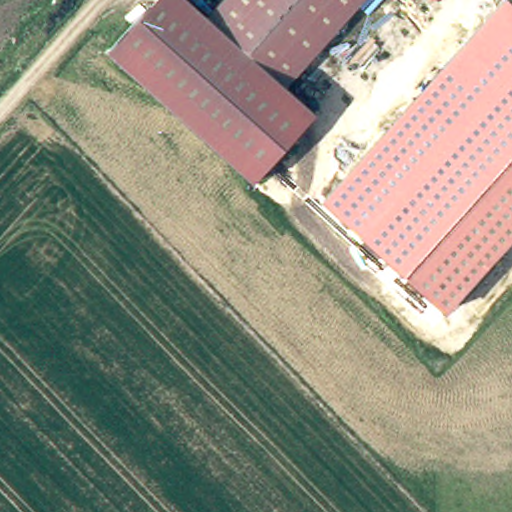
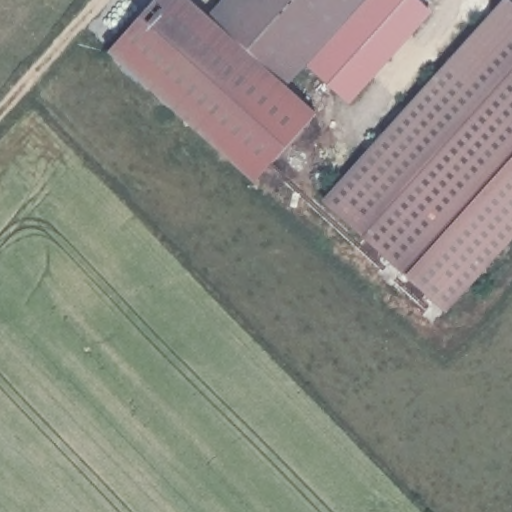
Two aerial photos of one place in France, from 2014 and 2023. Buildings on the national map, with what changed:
unchanged [(319,114),(259,183),(110,55),(158,0),(188,0),(319,114)]
unchanged [(290,87),(210,17),(225,0),(365,0),(290,87)]
new [(430,10),(349,102),(308,66),(365,0),(419,0),(430,10)]
unchanged [(503,0),(508,0),(512,3),(512,238),(445,312),(322,201),(503,0)]

